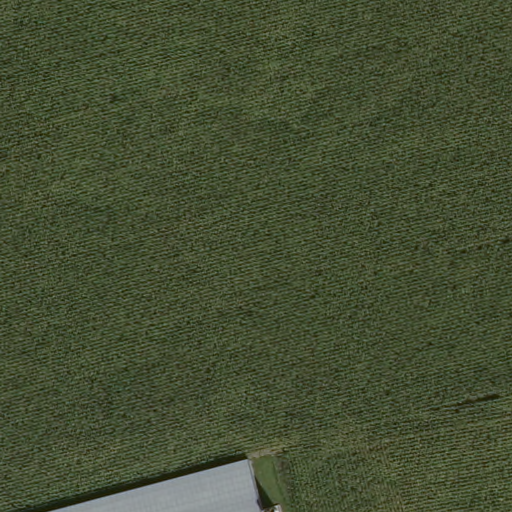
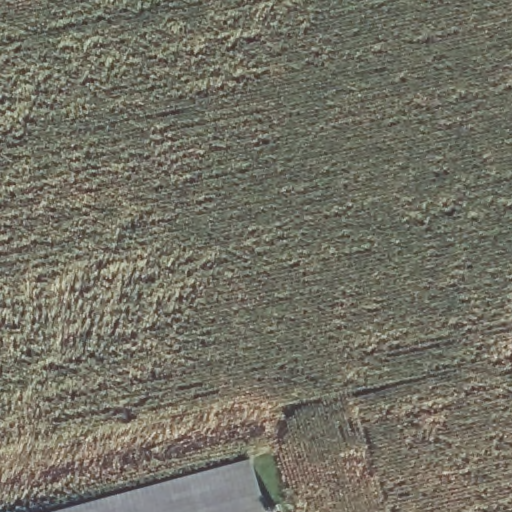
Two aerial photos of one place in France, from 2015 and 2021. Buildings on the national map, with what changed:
unchanged [(263,512),(50,512),(249,459),(263,512)]

